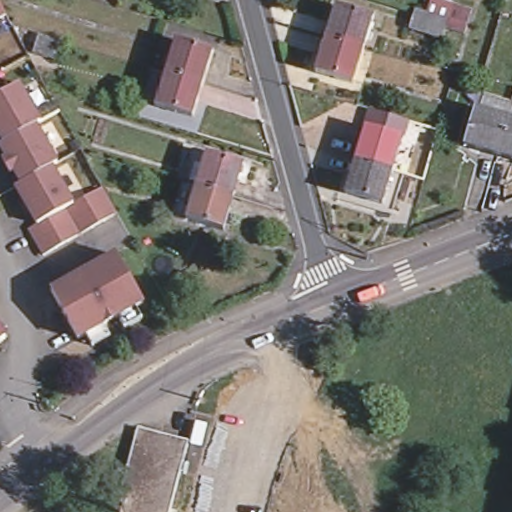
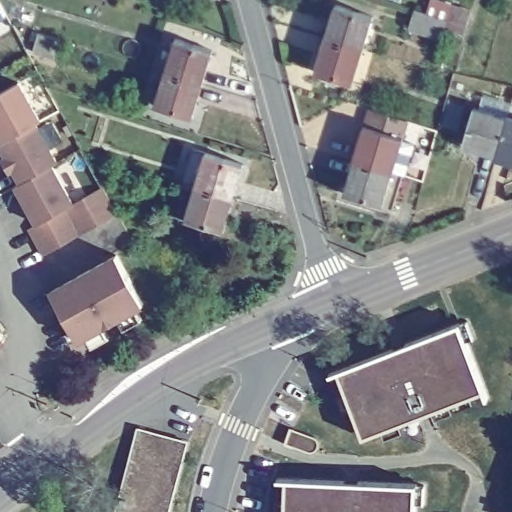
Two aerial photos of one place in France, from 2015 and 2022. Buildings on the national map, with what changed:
unchanged [(419,2),(430,5),(432,0),(455,0),(453,12),(447,31),(414,21),(419,2)]
unchanged [(8,14),(0,18),(0,1),(8,14)]
unchanged [(336,6),(374,16),(366,50),(328,40),(336,6)]
unchanged [(162,69),(171,36),(209,48),(199,81),(162,69)]
unchanged [(57,46),(51,65),(30,58),(35,39),(57,46)]
unchanged [(366,50),(356,84),(319,72),(328,40),(366,50)]
unchanged [(189,115),(153,103),(162,69),(199,81),(189,115)]
unchanged [(0,127),(0,92),(22,80),(43,119),(38,121),(6,138),(0,127)]
unchanged [(464,145),(475,107),(509,117),(499,154),(464,145)]
unchanged [(512,118),(512,158),(499,154),(509,117),(512,118)]
unchanged [(16,166),(11,168),(5,156),(9,154),(2,140),(6,138),(38,121),(59,161),(54,163),(23,179),(16,166)]
unchanged [(363,130),(401,140),(392,173),(354,163),(363,130)]
unchanged [(181,180),(190,147),(256,168),(248,201),(238,235),(171,214),(181,180)]
unchanged [(38,222),(31,208),(27,211),(20,198),(24,196),(18,182),(23,179),(54,163),(75,202),(38,222)]
unchanged [(392,173),(383,205),(346,195),(354,163),(392,173)]
unchanged [(44,253),(30,226),(38,222),(75,202),(103,187),(117,214),(44,253)]
unchanged [(116,254),(142,303),(134,308),(139,316),(122,326),(118,317),(103,325),(108,334),(90,343),(85,334),(78,338),(52,289),(116,254)]
new [(339,370),(460,324),(484,389),(364,436),(339,370)]
unchanged [(3,332),(1,334),(4,339),(0,343),(0,327),(3,332)]
unchanged [(190,441),(186,461),(191,463),(188,472),(183,471),(172,510),(176,512),(118,512),(141,429),(143,427),(190,441)]
demolished [(334,512),(288,512),(308,436),(351,447),(334,512)]
new [(417,485),(416,512),(285,512),(286,479),(417,485)]

